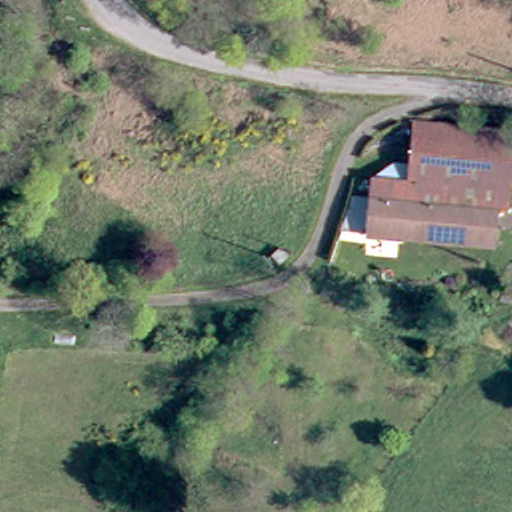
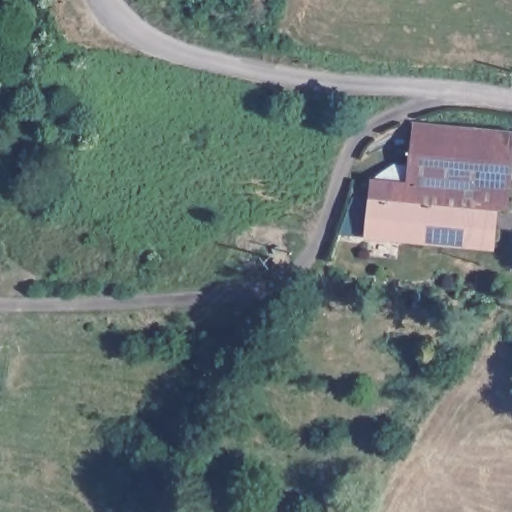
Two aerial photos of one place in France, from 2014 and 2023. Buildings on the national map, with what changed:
unchanged [(399,175),(405,117),(509,129),(495,201),(484,200),(397,194),(399,175)]
unchanged [(482,238),(356,228),(363,172),(399,175),(397,194),(484,200),(482,238)]

